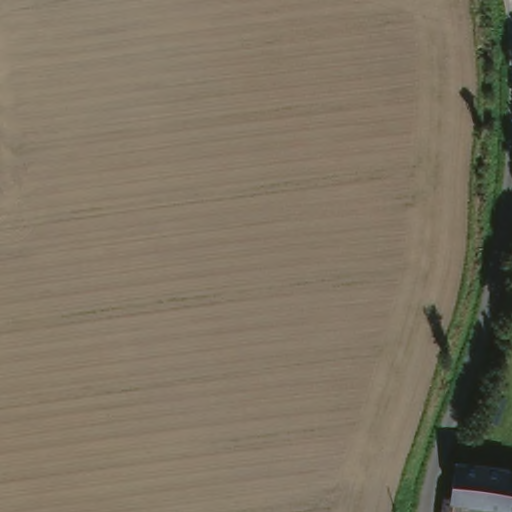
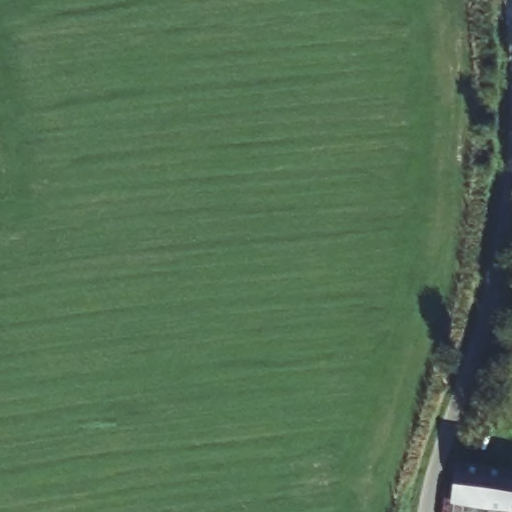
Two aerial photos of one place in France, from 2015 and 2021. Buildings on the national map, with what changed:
unchanged [(445,496),(450,497),(454,461),(507,467),(507,471),(512,471),(512,504),(466,499),(464,512),(444,512),(445,496)]

